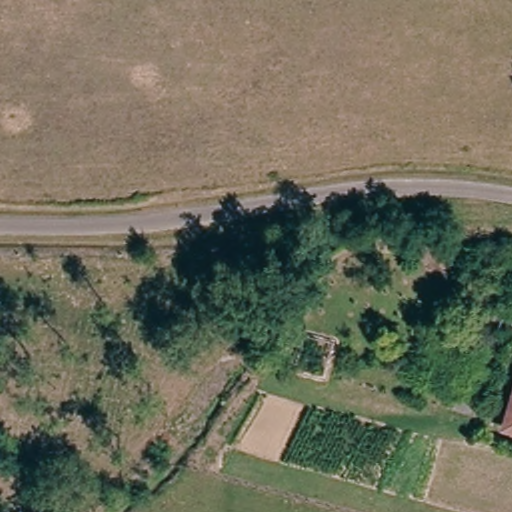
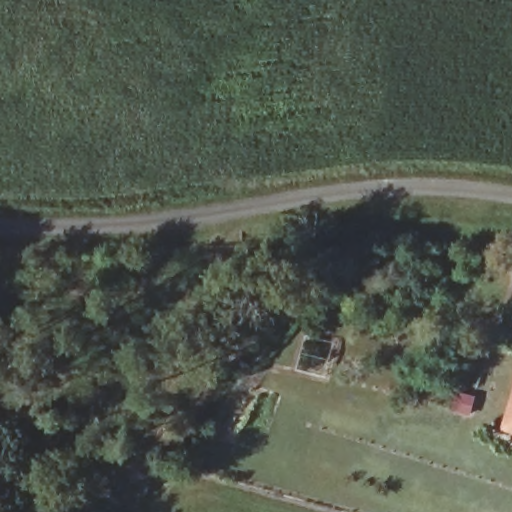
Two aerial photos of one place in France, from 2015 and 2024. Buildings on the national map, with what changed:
unchanged [(347,342),(335,382),(300,373),(308,333),(347,342)]
unchanged [(512,409),(512,434),(505,432),(512,409)]

